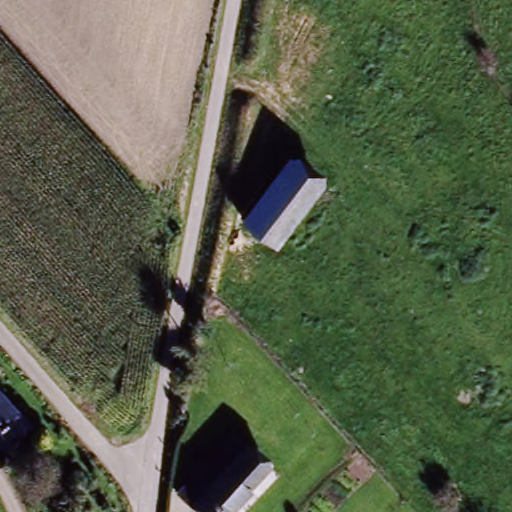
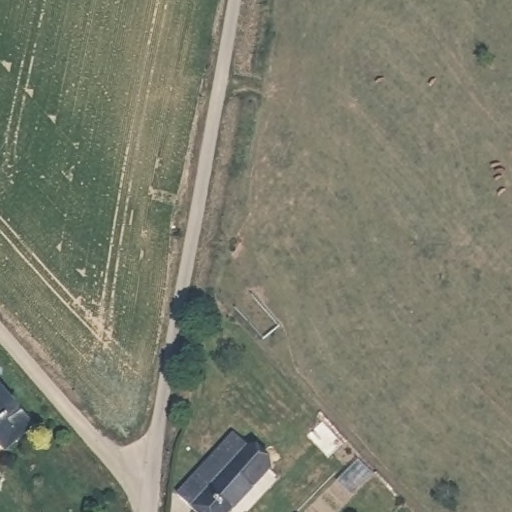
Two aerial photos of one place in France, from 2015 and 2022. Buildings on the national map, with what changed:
demolished [(285,175),(317,198),(273,255),(243,231),(285,175)]
unchanged [(0,436),(0,389),(30,421),(8,444),(0,436)]
unchanged [(170,497),(230,433),(269,470),(229,512),(186,512),(170,497)]

